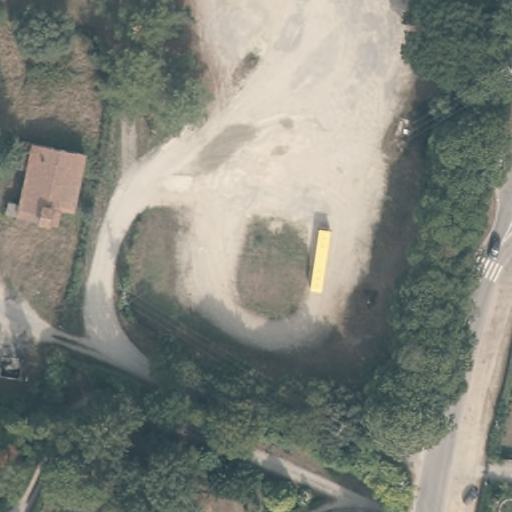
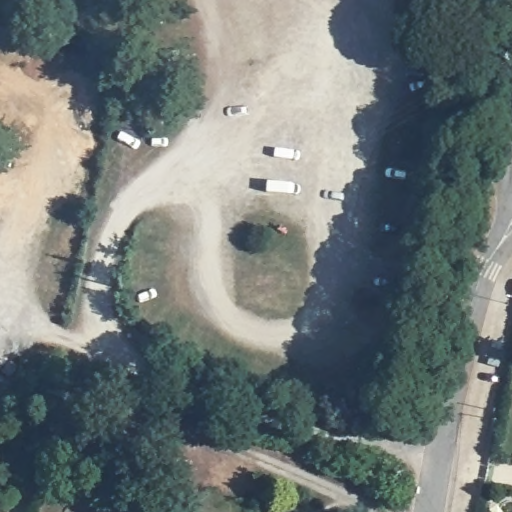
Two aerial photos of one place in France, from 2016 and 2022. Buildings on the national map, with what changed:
demolished [(11,214),(14,201),(25,204),(33,170),(21,167),(28,141),(89,154),(77,210),(64,209),(61,224),(11,214)]
unchanged [(66,470),(74,452),(103,463),(95,481),(66,470)]

